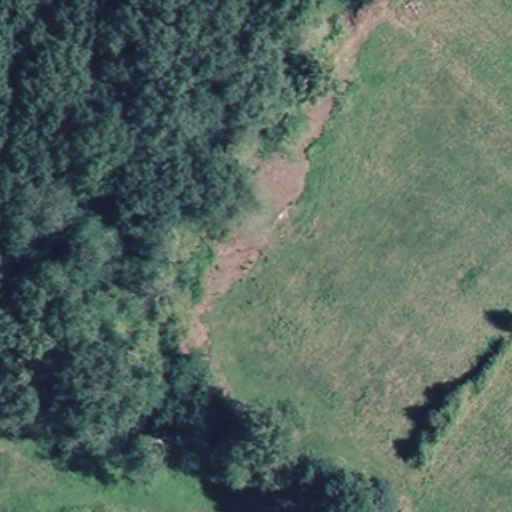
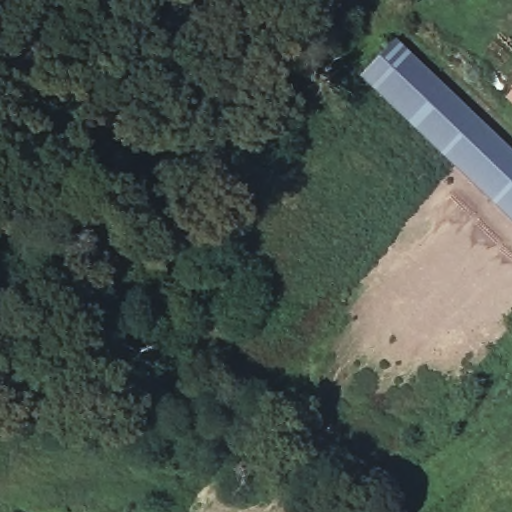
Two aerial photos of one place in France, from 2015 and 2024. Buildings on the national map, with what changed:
new [(361,64),(393,31),(512,144),(512,207),(361,64)]

